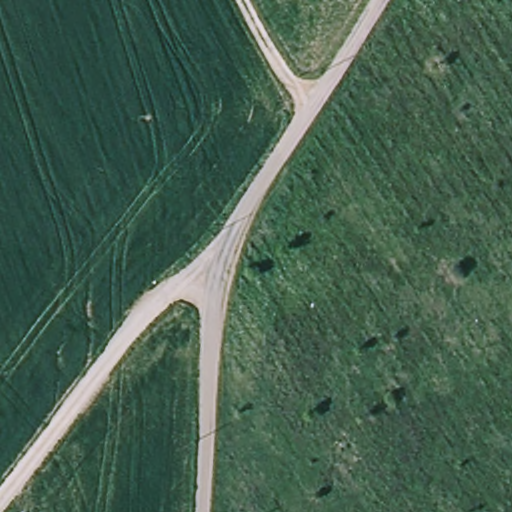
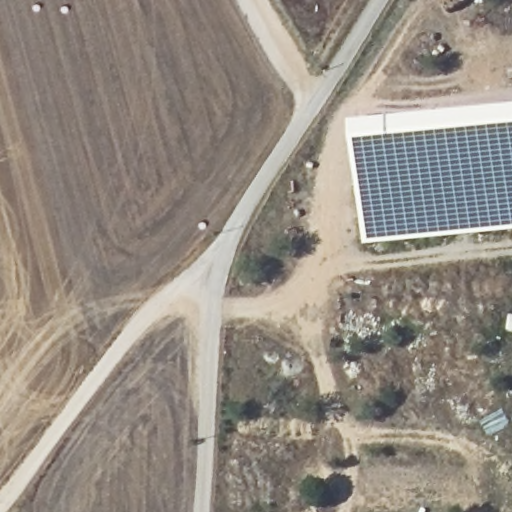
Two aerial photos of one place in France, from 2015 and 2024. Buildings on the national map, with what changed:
new [(367,246),(356,124),(512,110),(512,232),(367,246)]
new [(508,331),(511,315),(512,316),(512,332),(508,331)]

